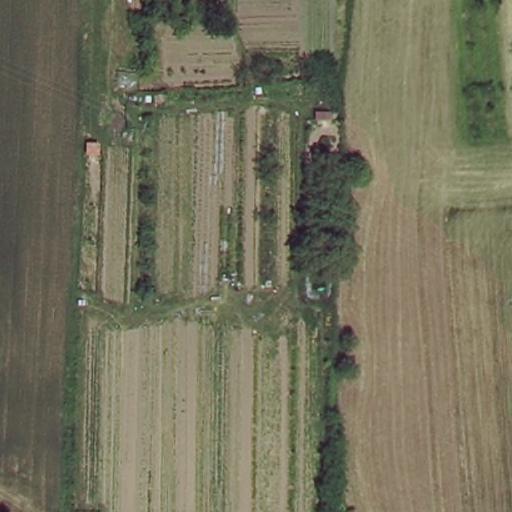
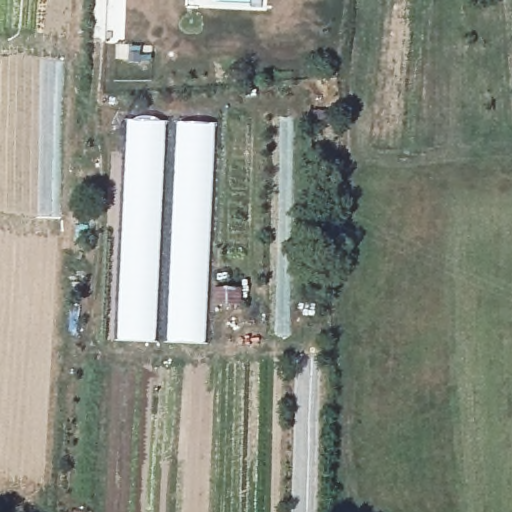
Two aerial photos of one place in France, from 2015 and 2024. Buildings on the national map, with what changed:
new [(118,256),(127,120),(216,123),(210,290),(206,345),(158,342),(116,341),(118,256)]

